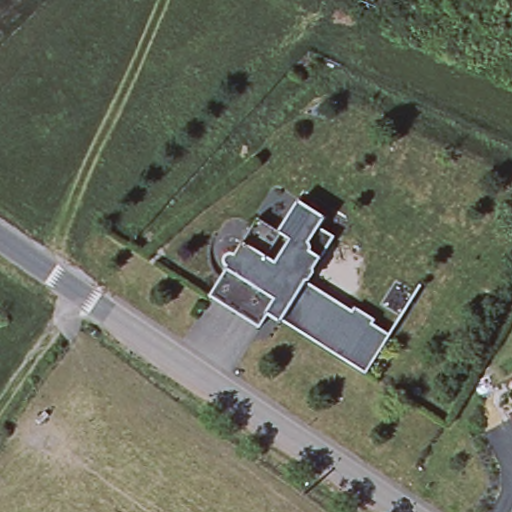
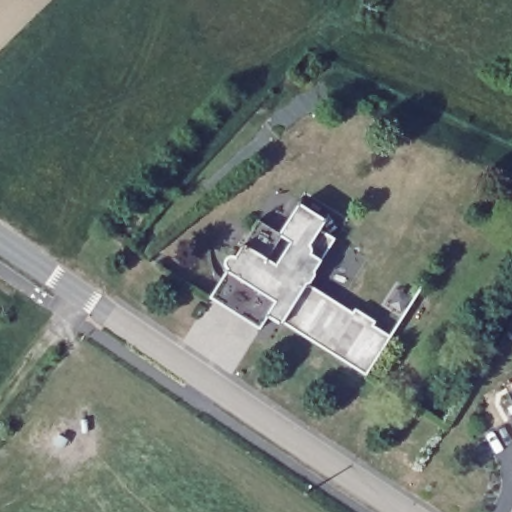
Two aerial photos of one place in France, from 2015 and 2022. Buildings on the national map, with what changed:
unchanged [(282,323),(268,314),(260,327),(211,296),(229,267),(227,265),(227,264),(226,263),(225,263),(225,262),(225,261),(225,260),(226,258),(227,258),(227,257),(228,255),(229,255),(230,255),(230,254),(231,254),(232,254),(233,254),(234,254),(235,254),(236,254),(237,255),(245,242),(260,218),(281,232),(300,202),(327,219),(320,228),(335,237),(315,269),(316,273),(312,280),(307,282),(353,311),(356,307),(376,320),(373,323),(391,335),(367,373),(348,361),(283,320),(282,323)]

